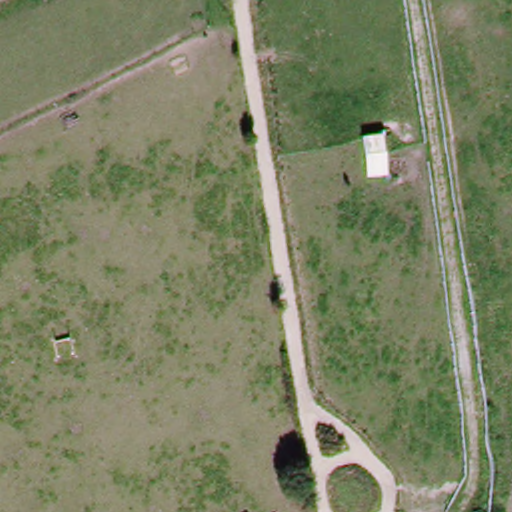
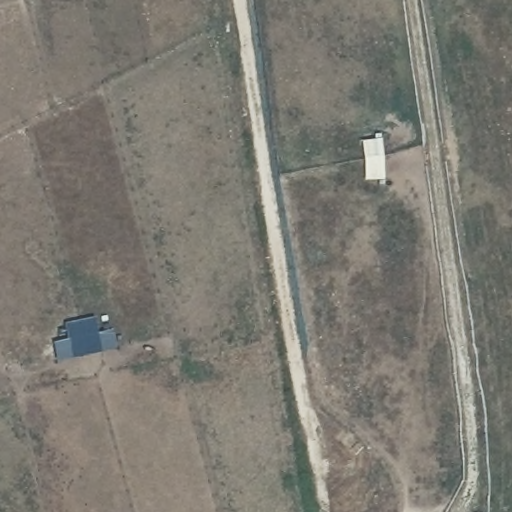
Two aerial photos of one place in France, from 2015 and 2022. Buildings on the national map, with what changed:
new [(58,364),(54,344),(69,341),(66,325),(95,319),(98,336),(113,333),(116,352),(58,364)]

